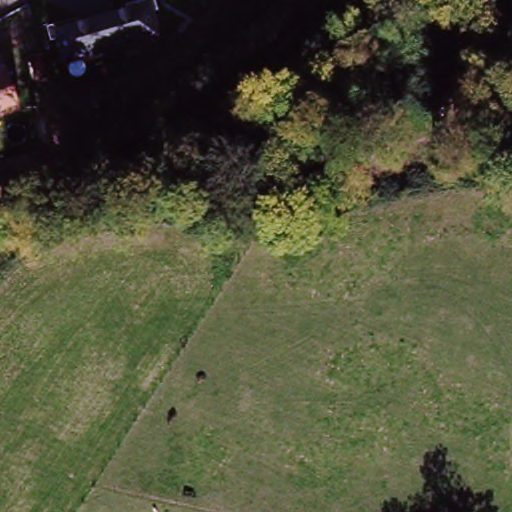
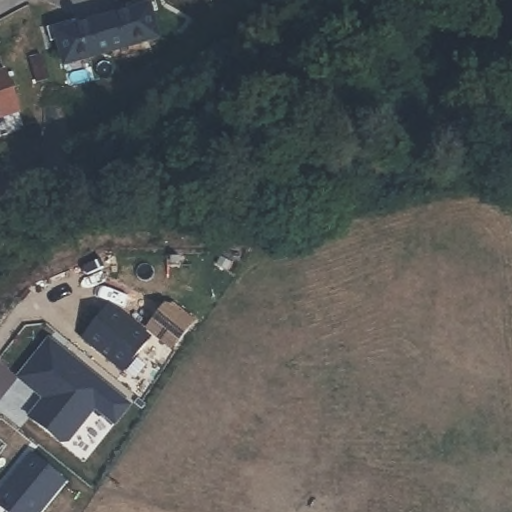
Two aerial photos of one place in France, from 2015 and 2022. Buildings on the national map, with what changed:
unchanged [(165,45),(63,68),(57,33),(159,10),(165,45)]
unchanged [(17,111),(0,117),(0,71),(5,69),(17,111)]
new [(152,336),(123,373),(81,339),(109,305),(152,336)]
new [(133,405),(115,426),(95,409),(66,446),(28,419),(41,399),(16,379),(48,338),(133,405)]
new [(66,481),(40,512),(4,512),(0,509),(0,489),(30,453),(66,481)]

